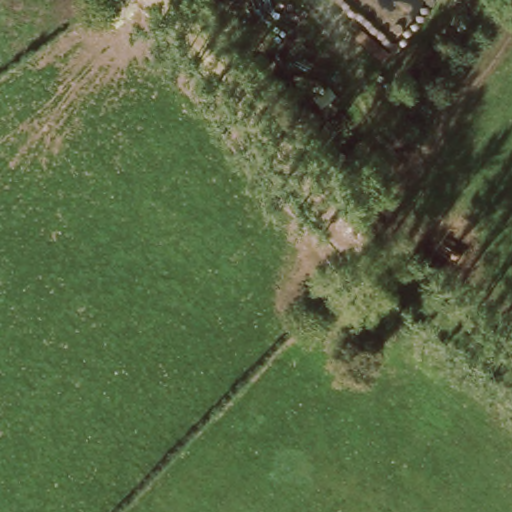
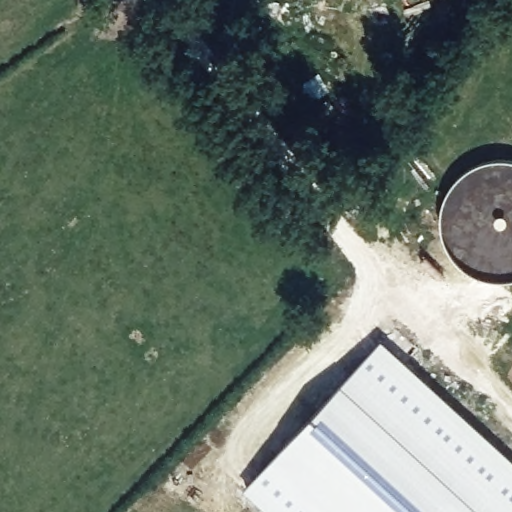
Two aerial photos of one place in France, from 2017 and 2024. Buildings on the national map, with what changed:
new [(382,339),(512,460),(512,512),(271,512),(245,487),(382,339)]

